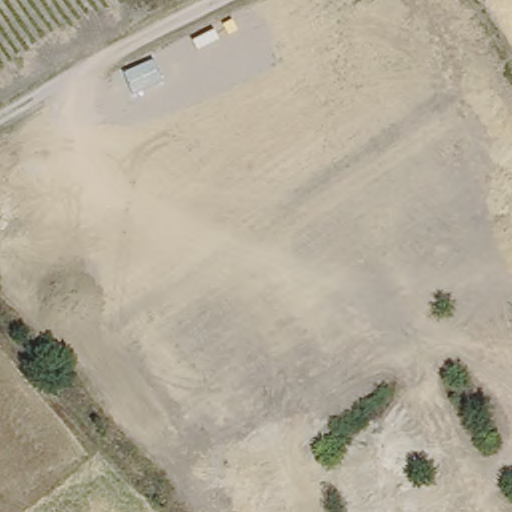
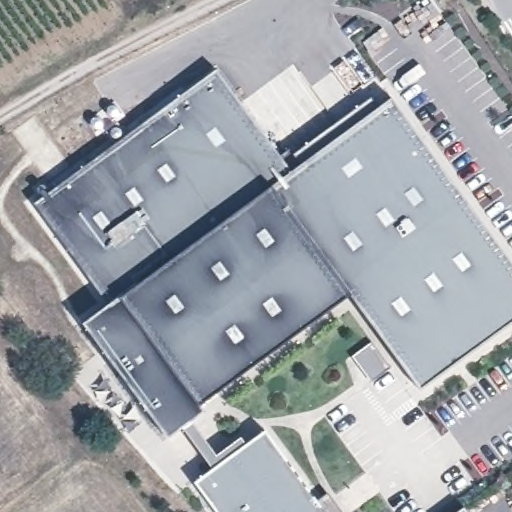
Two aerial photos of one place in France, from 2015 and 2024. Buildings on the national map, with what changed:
new [(111,303),(37,203),(217,70),(291,173),(393,97),(512,260),(512,321),(420,389),(349,292),(201,403),(206,410),(168,435),(84,322),(111,303)]
new [(266,430),(318,502),(328,493),(342,512),(219,512),(196,481),(266,430)]
new [(469,512),(453,512),(464,505),(469,512)]

